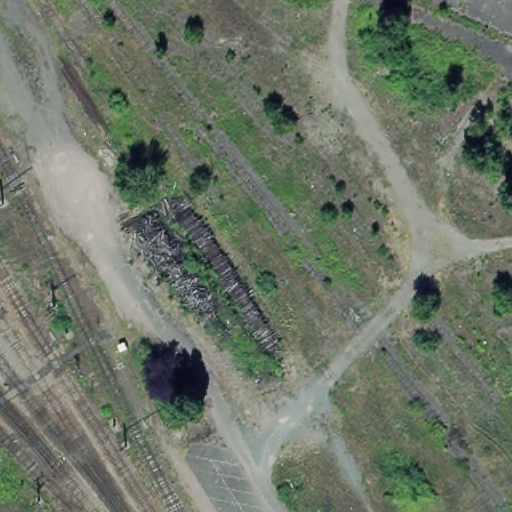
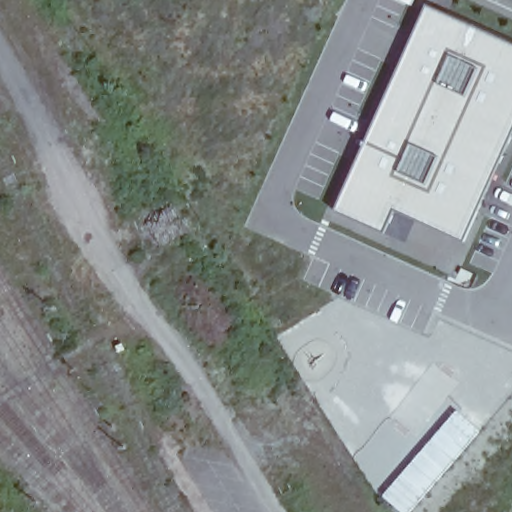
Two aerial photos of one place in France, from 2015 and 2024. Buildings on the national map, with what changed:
new [(512,123),(463,241),(384,211),(380,229),(331,207),(423,5),(512,47),(512,123)]
unchanged [(156,181),(168,197),(151,210),(138,193),(156,181)]
new [(481,431),(411,512),(403,512),(384,496),(458,411),(481,431)]

